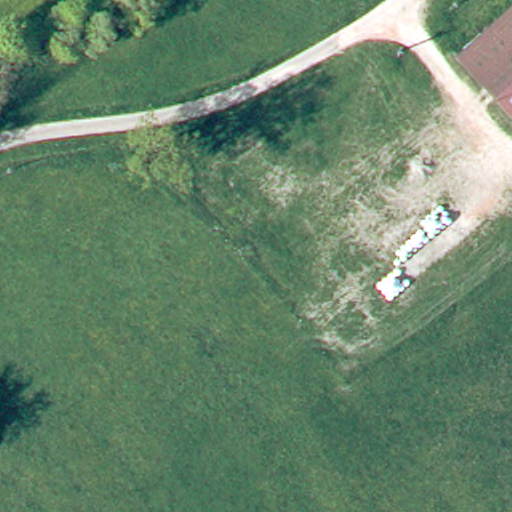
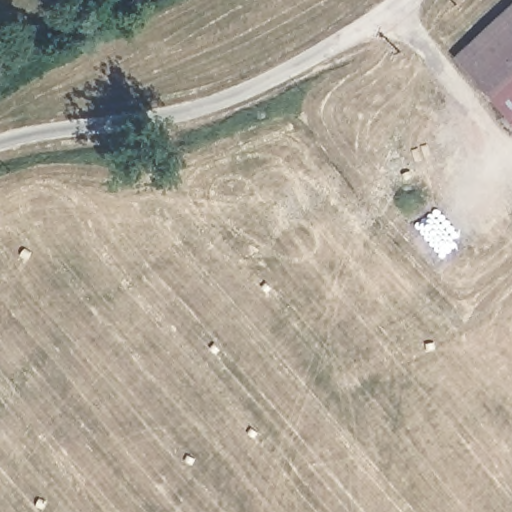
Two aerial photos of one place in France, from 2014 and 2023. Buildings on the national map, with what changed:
unchanged [(512,10),(512,109),(461,56),(512,10)]

